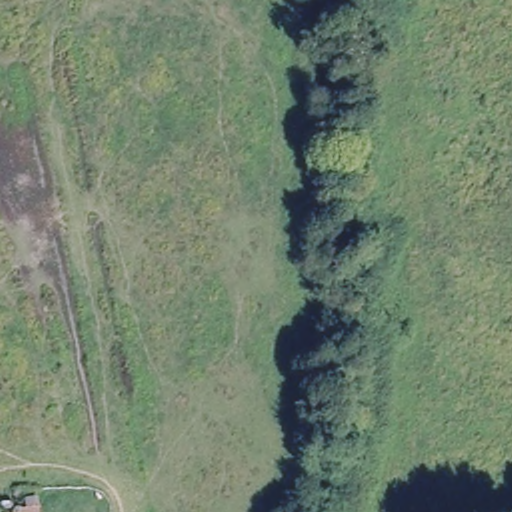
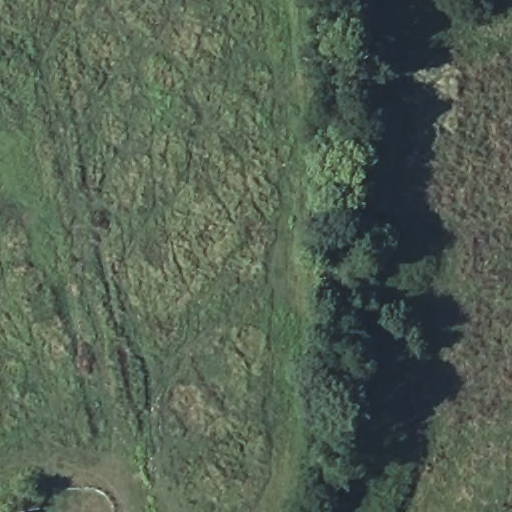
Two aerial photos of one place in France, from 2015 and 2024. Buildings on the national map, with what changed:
unchanged [(39,512),(0,512),(0,501),(38,497),(39,512)]

